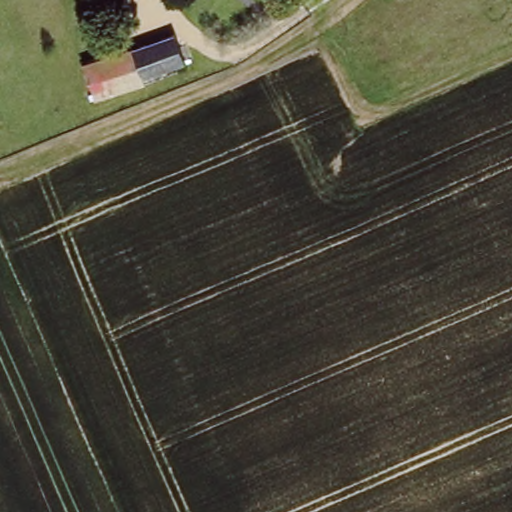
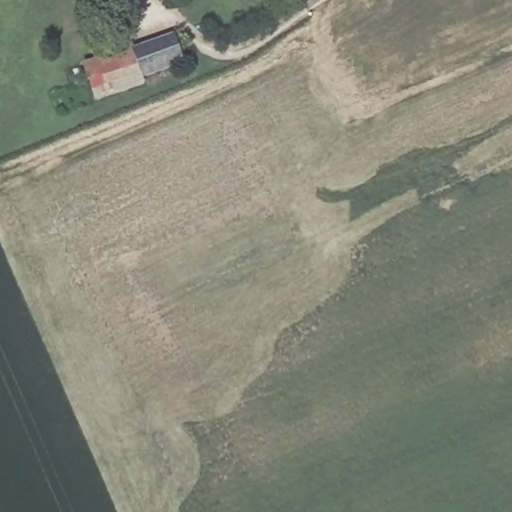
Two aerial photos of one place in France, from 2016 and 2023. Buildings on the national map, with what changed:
unchanged [(192,28),(197,25),(202,37),(187,45),(179,29),(189,24),(192,28)]
unchanged [(185,69),(145,80),(148,90),(96,104),(80,67),(176,36),(185,69)]

